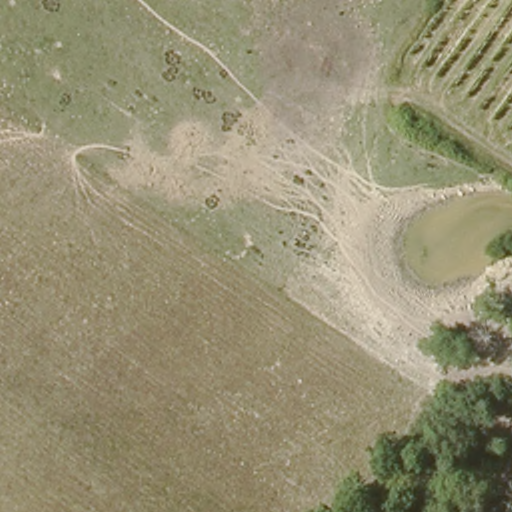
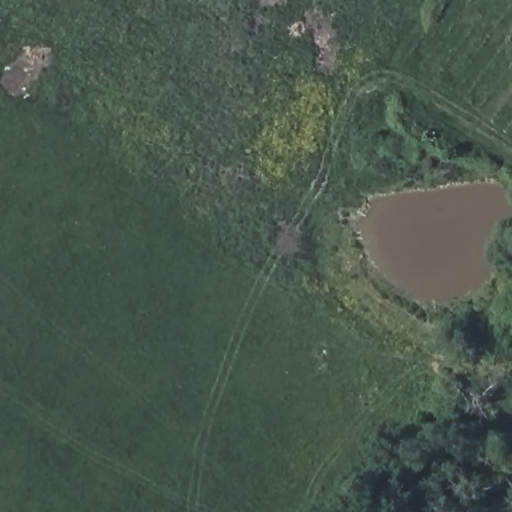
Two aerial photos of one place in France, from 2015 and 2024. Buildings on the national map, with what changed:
[]

